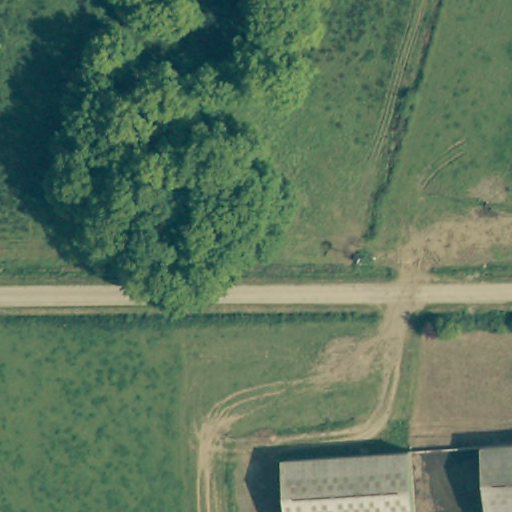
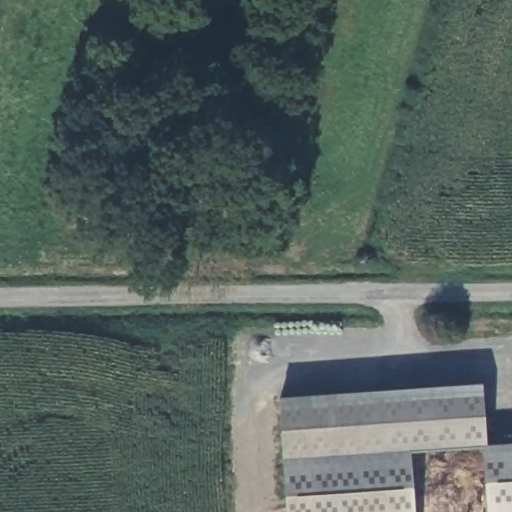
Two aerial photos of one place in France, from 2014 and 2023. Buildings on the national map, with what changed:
new [(409,450),(408,445),(283,453),(281,453),(278,397),(481,383),(487,445),(409,450)]
unchanged [(487,445),(512,443),(512,512),(491,512),(487,445)]
unchanged [(408,445),(413,512),(285,512),(282,462),(281,453),(283,453),(408,445)]

